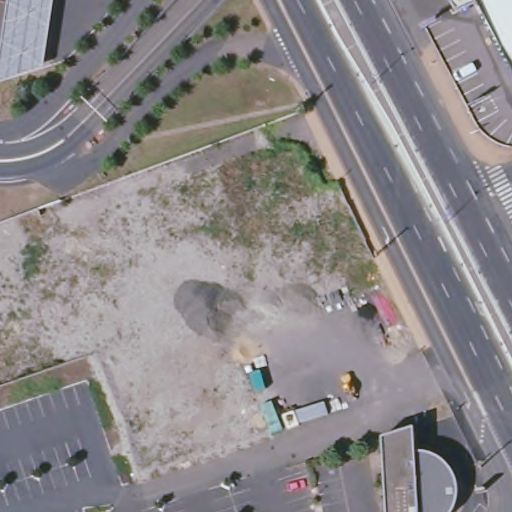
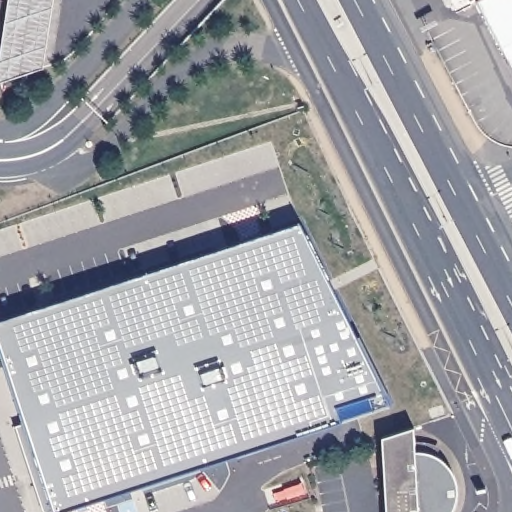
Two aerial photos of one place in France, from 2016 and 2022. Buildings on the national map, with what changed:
unchanged [(0,84),(0,58),(9,0),(55,0),(45,69),(0,84)]
unchanged [(458,11),(452,0),(480,0),(477,1),(458,11)]
unchanged [(512,0),(512,69),(477,1),(480,0),(512,0)]
demolished [(173,184),(186,223),(127,243),(126,242),(117,245),(109,224),(119,220),(113,205),(173,184)]
demolished [(38,208),(56,259),(51,260),(54,267),(35,274),(33,268),(0,280),(0,222),(38,208)]
new [(385,394),(336,409),(341,421),(66,512),(56,512),(55,509),(46,512),(44,512),(16,426),(26,423),(0,341),(0,320),(301,225),(385,394)]
demolished [(173,266),(188,261),(222,249),(233,284),(204,294),(205,295),(205,297),(205,298),(205,299),(204,300),(202,302),(201,302),(200,303),(203,315),(148,334),(136,295),(93,310),(82,277),(130,259),(137,278),(173,266)]
demolished [(310,268),(313,277),(294,284),(290,274),(310,268)]
demolished [(264,438),(135,482),(92,354),(96,353),(98,352),(105,349),(148,334),(203,315),(221,310),(264,438)]
unchanged [(415,451),(420,452),(425,453),(431,455),(440,461),(442,464),(446,468),(450,474),(452,479),(452,482),(453,489),(453,496),(452,502),(450,509),(448,512),(385,512),(383,489),(380,437),(408,427),(410,451),(415,451)]

